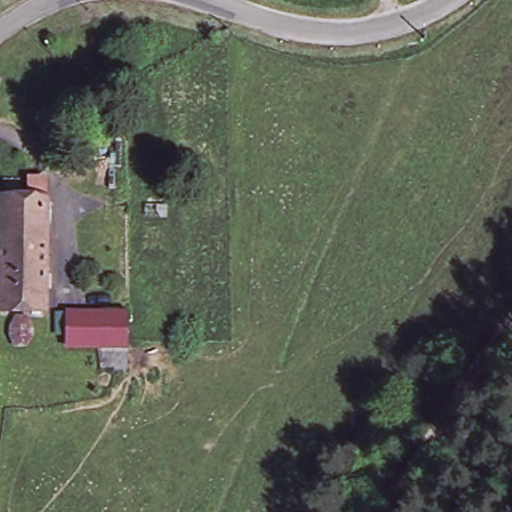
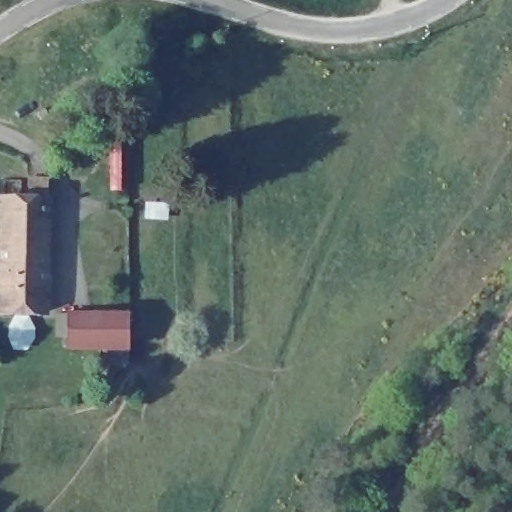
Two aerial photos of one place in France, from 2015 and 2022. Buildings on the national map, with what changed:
unchanged [(47,318),(0,316),(0,202),(57,204),(47,318)]
unchanged [(70,313),(124,314),(122,346),(68,345),(70,313)]

